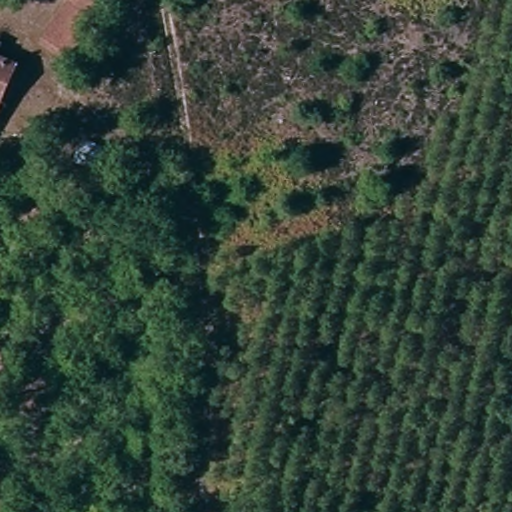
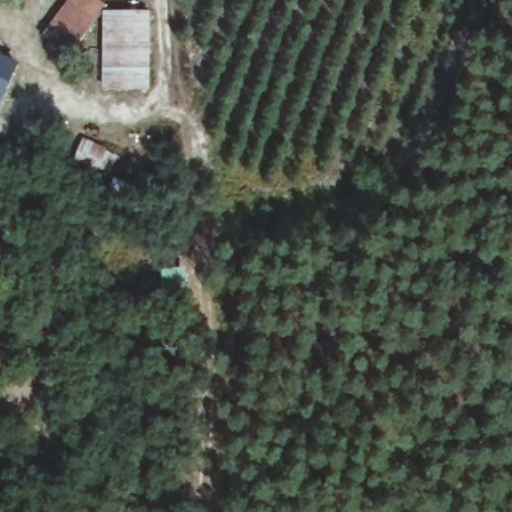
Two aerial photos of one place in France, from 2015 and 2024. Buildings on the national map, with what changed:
unchanged [(62,60),(36,41),(65,0),(96,0),(104,6),(62,60)]
new [(151,10),(152,90),(104,90),(104,10),(151,10)]
unchanged [(0,98),(0,56),(17,64),(0,98)]
new [(110,156),(100,152),(79,145),(85,126),(107,135),(117,139),(110,156)]

